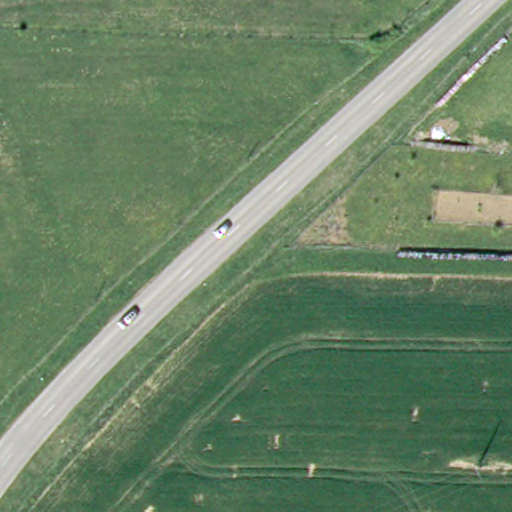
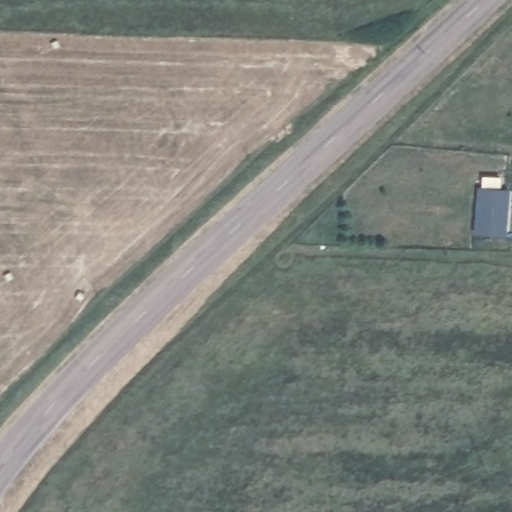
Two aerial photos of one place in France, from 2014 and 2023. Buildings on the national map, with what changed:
new [(479,188),(510,190),(507,236),(476,234),(479,188)]

